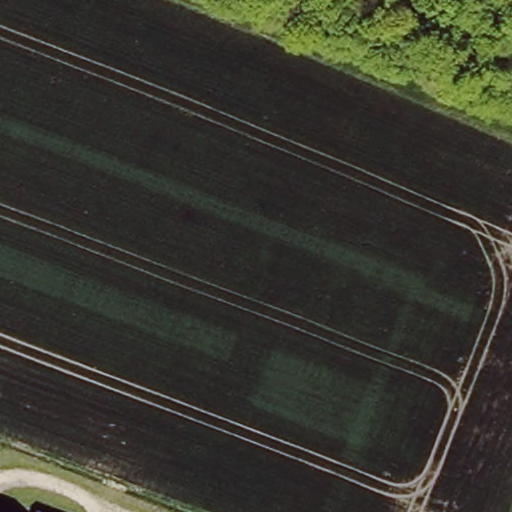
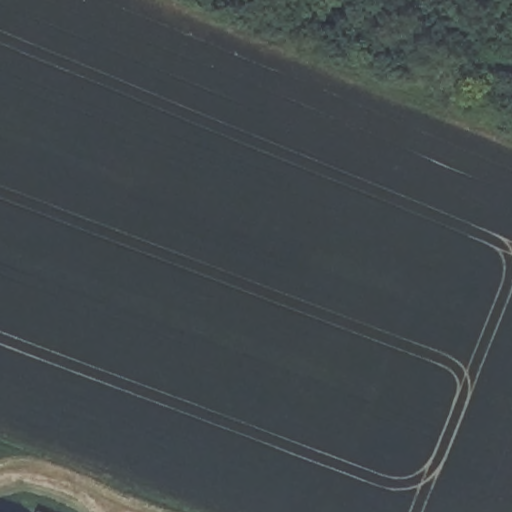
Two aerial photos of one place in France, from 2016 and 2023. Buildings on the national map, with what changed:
unchanged [(38,511),(37,512),(0,512),(0,496),(38,511)]

